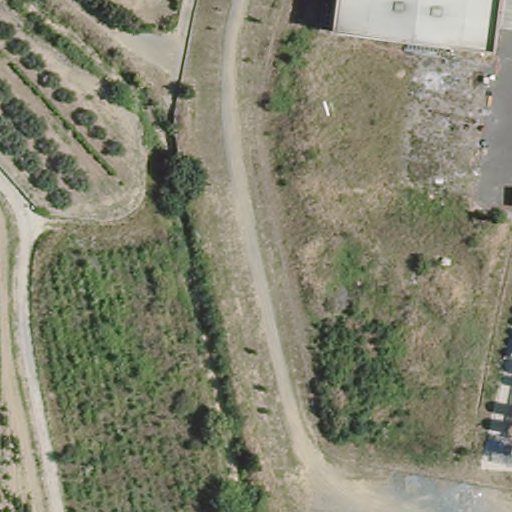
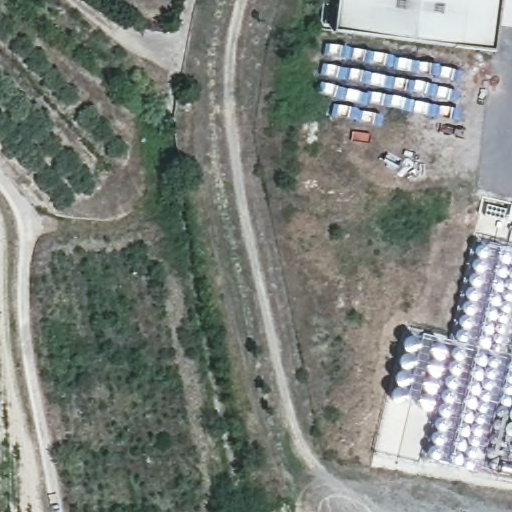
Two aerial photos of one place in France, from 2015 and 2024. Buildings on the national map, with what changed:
unchanged [(492,52),(331,29),(335,0),(499,0),(492,52)]
new [(505,249),(510,255),(507,266),(512,266),(512,355),(460,343),(457,337),(475,252),(478,246),(487,244),(505,249)]
new [(435,408),(392,398),(407,332),(460,343),(512,355),(512,408),(512,410),(501,407),(497,411),(487,459),(485,467),(490,473),(426,458),(435,408)]
new [(485,467),(487,459),(497,411),(501,407),(512,410),(512,408),(512,478),(490,473),(485,467)]

